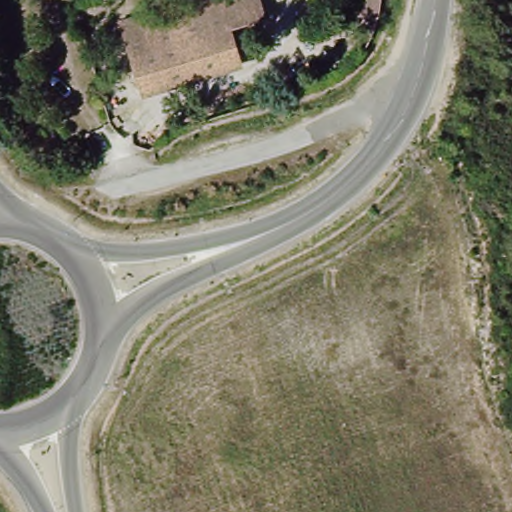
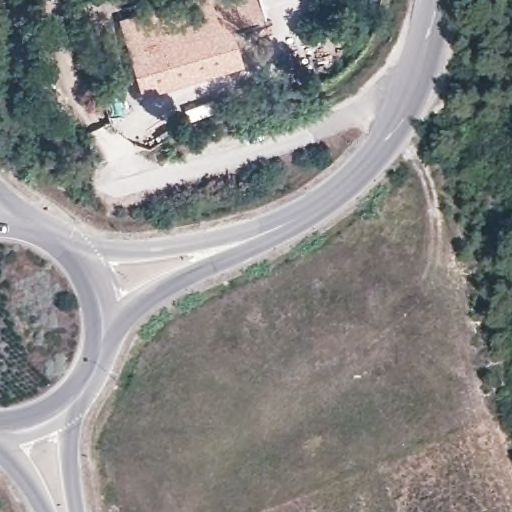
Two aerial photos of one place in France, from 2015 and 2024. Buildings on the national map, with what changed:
unchanged [(272,16),(236,25),(245,69),(146,95),(122,26),(200,0),(264,0),(272,16)]
unchanged [(379,14),(356,11),(358,0),(381,0),(379,14)]

